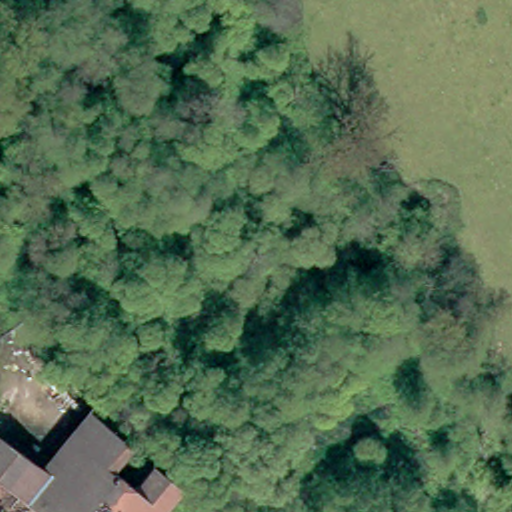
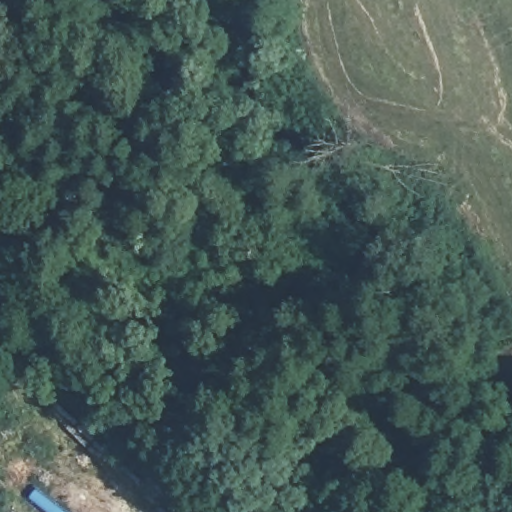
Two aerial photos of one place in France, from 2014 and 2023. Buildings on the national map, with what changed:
demolished [(0,444),(38,474),(70,429),(108,456),(91,482),(123,506),(141,479),(168,502),(162,512),(30,512),(0,482),(0,444)]
demolished [(0,512),(0,482),(30,512),(0,512)]

